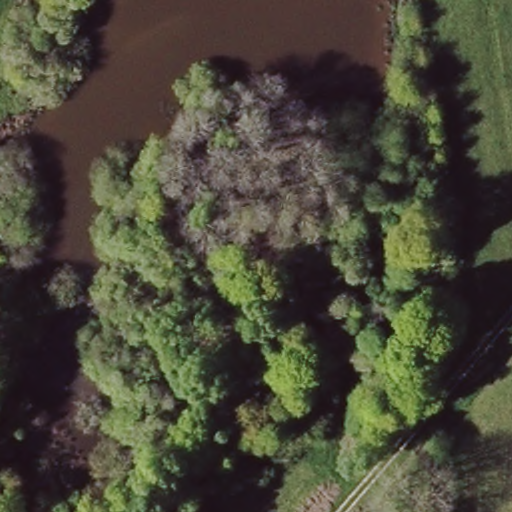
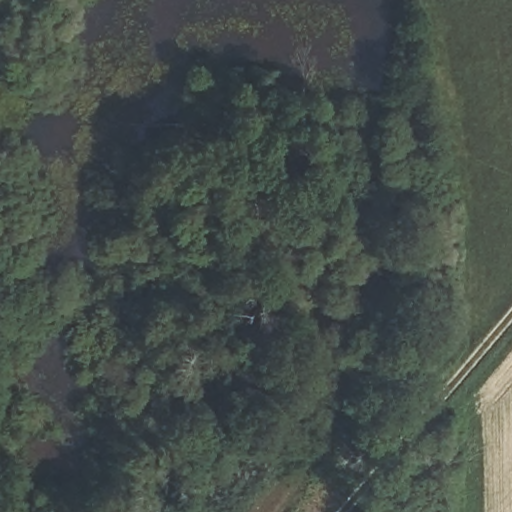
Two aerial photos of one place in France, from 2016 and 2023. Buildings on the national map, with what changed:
[]

